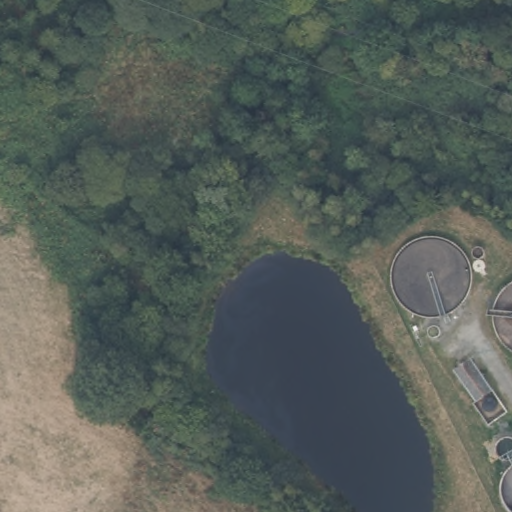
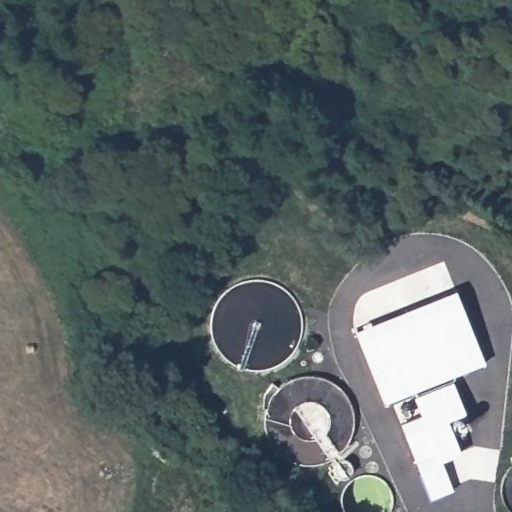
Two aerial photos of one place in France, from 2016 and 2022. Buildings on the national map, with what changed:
new [(354,328),(456,289),(484,362),(383,402),(354,328)]
demolished [(474,402),(453,371),(469,360),(491,392),(474,402)]
new [(421,414),(413,395),(453,380),(466,411),(448,419),(461,452),(440,460),(453,490),(429,500),(399,423),(421,414)]

